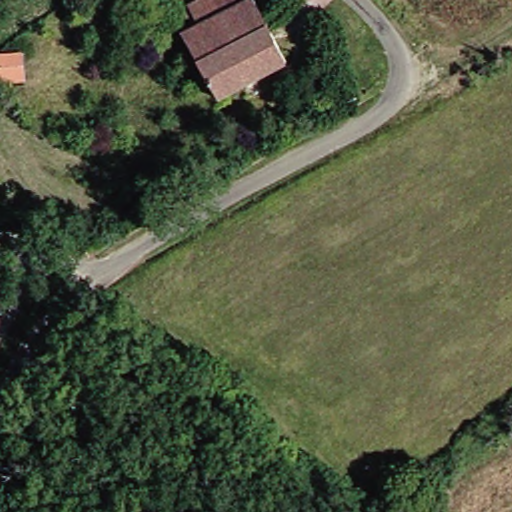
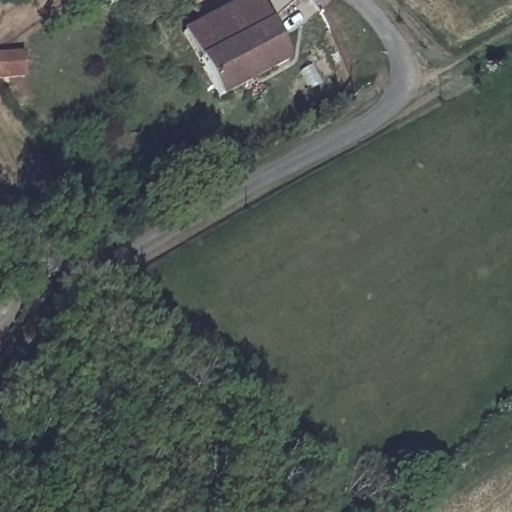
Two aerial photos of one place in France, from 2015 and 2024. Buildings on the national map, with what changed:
unchanged [(172,13),(195,0),(254,0),(286,61),(219,97),(172,13)]
unchanged [(24,55),(25,77),(0,78),(0,56),(24,55)]

